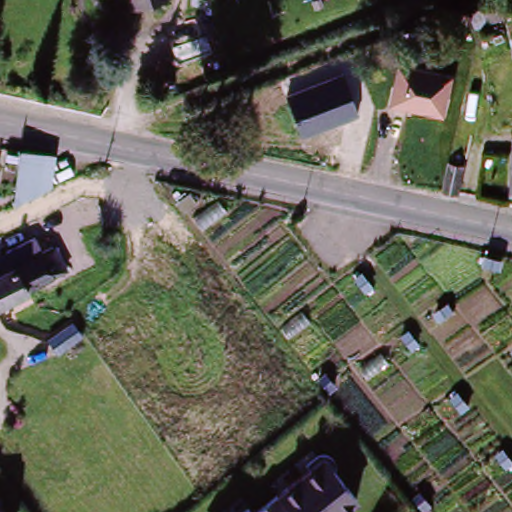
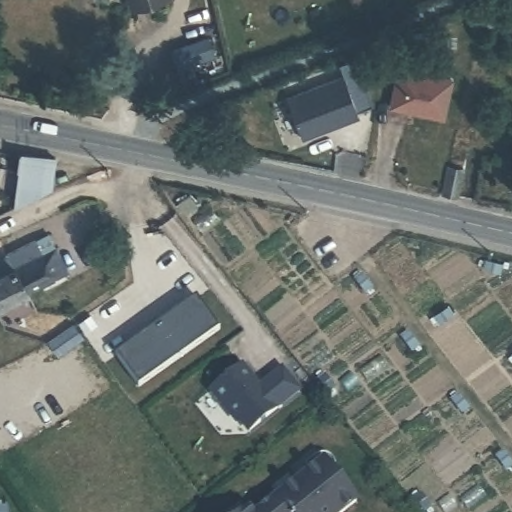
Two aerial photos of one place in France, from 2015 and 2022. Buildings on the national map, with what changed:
unchanged [(126,0),(158,0),(129,10),(126,0)]
unchanged [(504,4),(509,17),(472,30),(467,17),(504,4)]
unchanged [(453,79),(444,120),(390,107),(399,66),(453,79)]
unchanged [(345,76),(358,117),(302,134),(287,95),(345,76)]
unchanged [(53,159),(48,191),(45,192),(11,207),(20,152),(53,159)]
unchanged [(512,166),(512,191),(511,191),(512,166)]
unchanged [(447,167),(457,169),(463,170),(458,197),(442,193),(447,167)]
demolished [(172,214),(182,227),(161,243),(150,231),(172,214)]
unchanged [(7,257),(5,255),(35,241),(42,255),(54,248),(67,272),(12,300),(0,306),(0,260),(7,257)]
new [(195,297),(219,329),(138,387),(114,356),(195,297)]
new [(241,363),(258,385),(280,367),(298,388),(247,430),(237,417),(234,420),(209,388),(241,363)]
unchanged [(329,462),(363,503),(352,512),(267,512),(329,462)]

